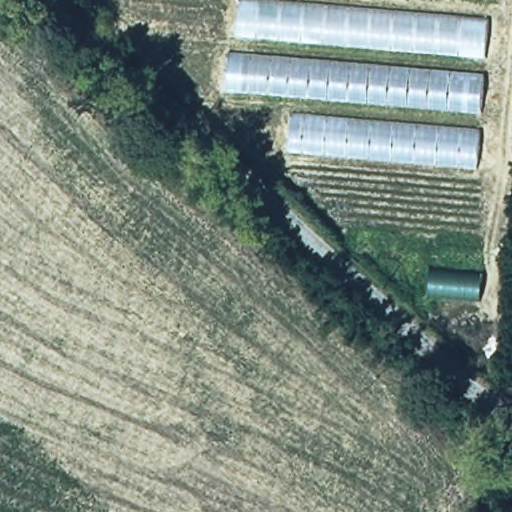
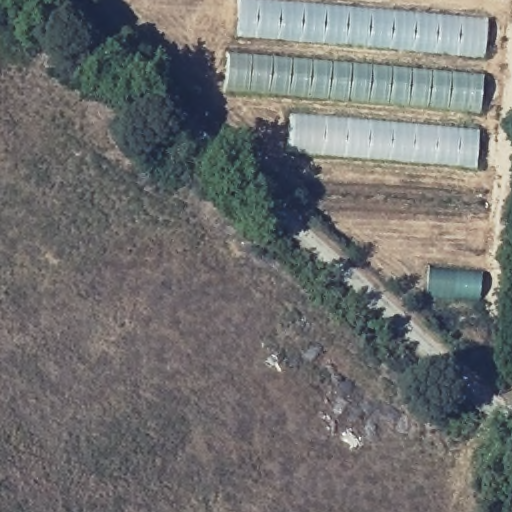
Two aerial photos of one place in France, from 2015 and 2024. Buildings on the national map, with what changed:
unchanged [(490,21),(476,171),(287,153),(292,98),(226,92),(238,0),(260,0),(490,21)]

